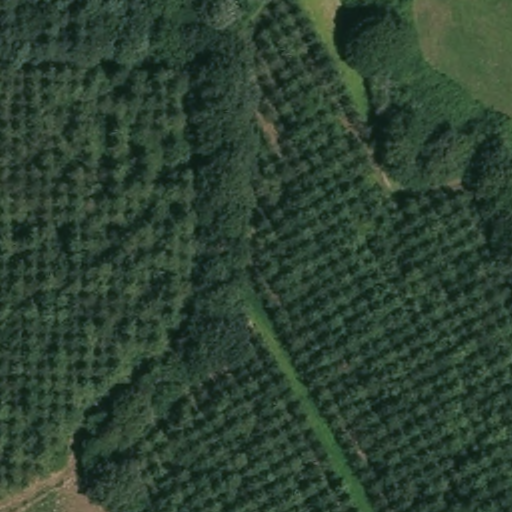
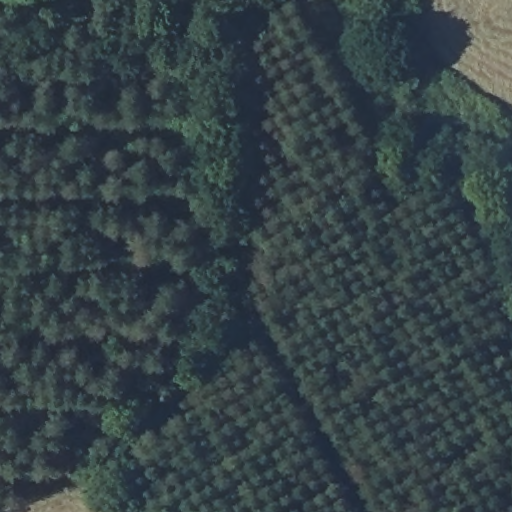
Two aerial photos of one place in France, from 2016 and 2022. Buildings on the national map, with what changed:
[]

